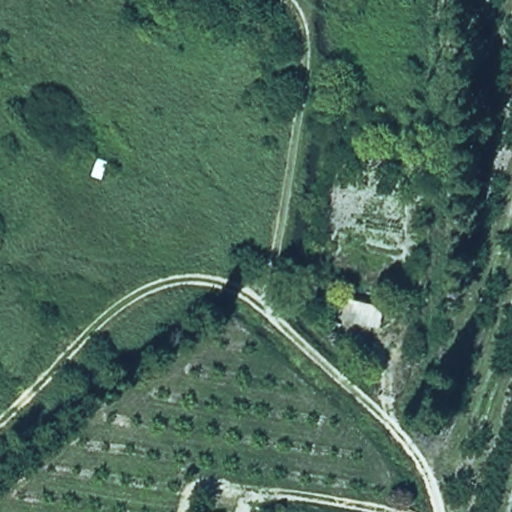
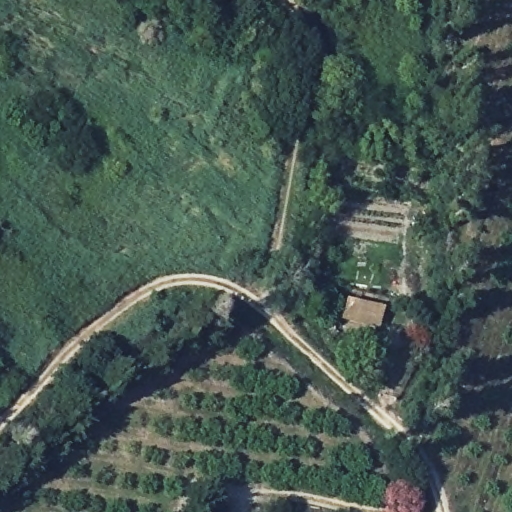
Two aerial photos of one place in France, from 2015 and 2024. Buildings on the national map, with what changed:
unchanged [(386,308),(381,330),(340,321),(345,300),(386,308)]

